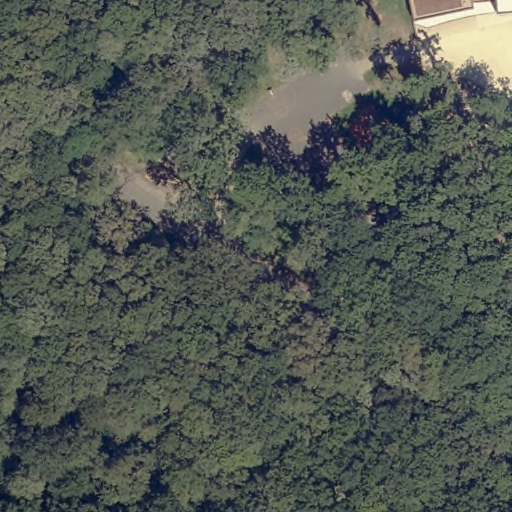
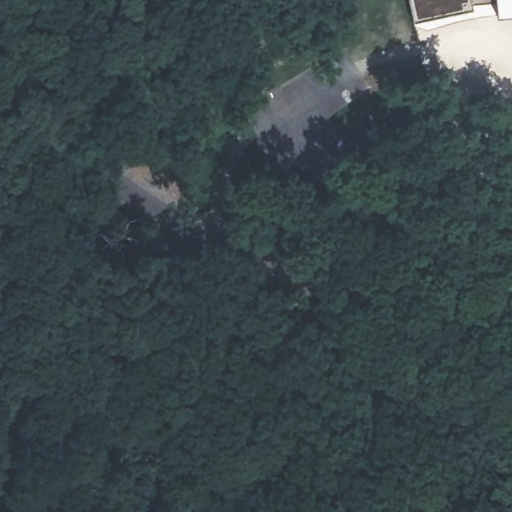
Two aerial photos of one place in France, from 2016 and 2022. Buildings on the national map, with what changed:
unchanged [(512,10),(497,11),(496,2),(472,4),(472,9),(413,22),(409,0),(512,0),(512,10)]

